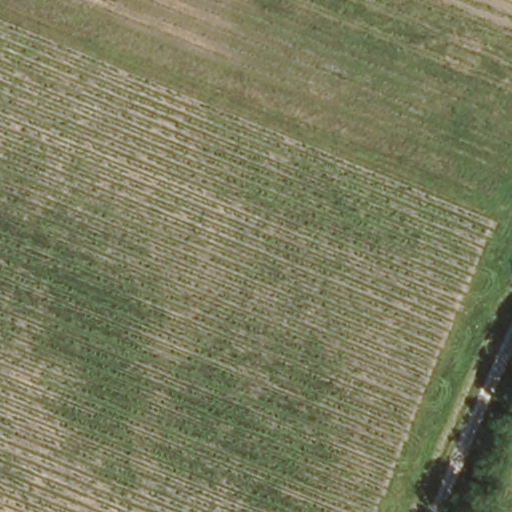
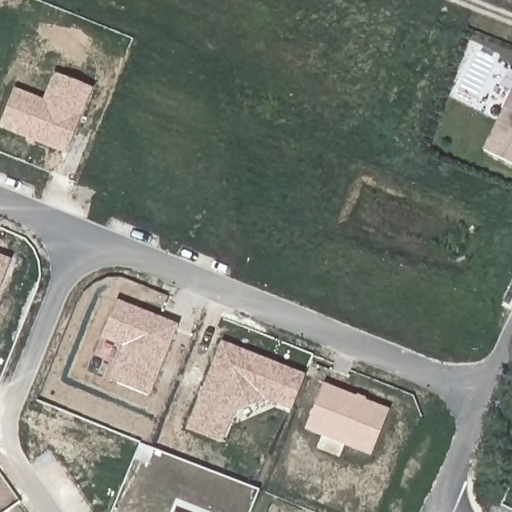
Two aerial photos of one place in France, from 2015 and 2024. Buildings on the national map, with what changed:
new [(64,148),(62,153),(0,128),(0,121),(14,88),(42,100),(53,73),(93,89),(68,150),(64,148)]
new [(482,149),(512,88),(512,164),(482,149)]
new [(2,262),(9,265),(0,287),(0,254),(4,256),(2,262)]
new [(122,347),(100,338),(116,299),(179,325),(150,397),(109,380),(122,347)]
new [(185,430),(222,341),(305,375),(290,411),(265,401),(235,417),(224,445),(185,430)]
new [(305,429),(323,383),(390,410),(371,456),(305,429)]

